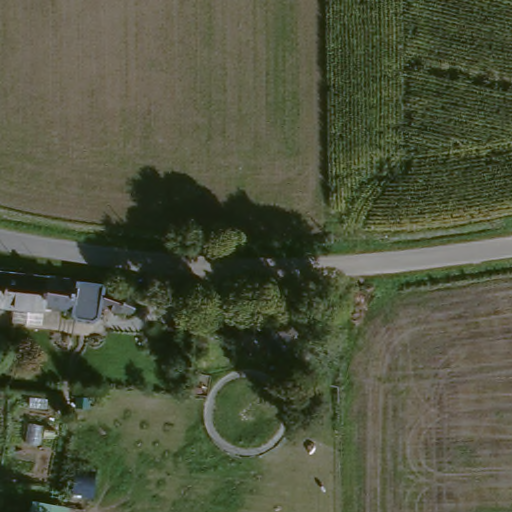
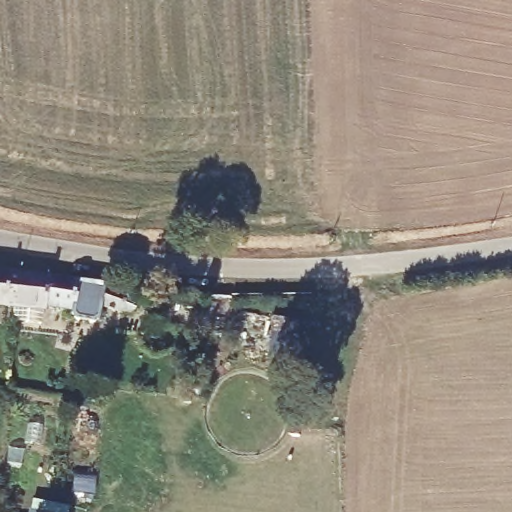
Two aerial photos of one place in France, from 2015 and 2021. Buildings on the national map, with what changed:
unchanged [(9,269),(9,266),(106,281),(102,315),(96,319),(78,317),(73,311),(74,307),(46,304),(46,306),(7,304),(9,269)]
unchanged [(9,269),(7,304),(7,305),(6,305),(0,304),(0,268),(9,269)]
unchanged [(109,286),(125,291),(136,299),(135,305),(121,306),(105,301),(109,286)]

